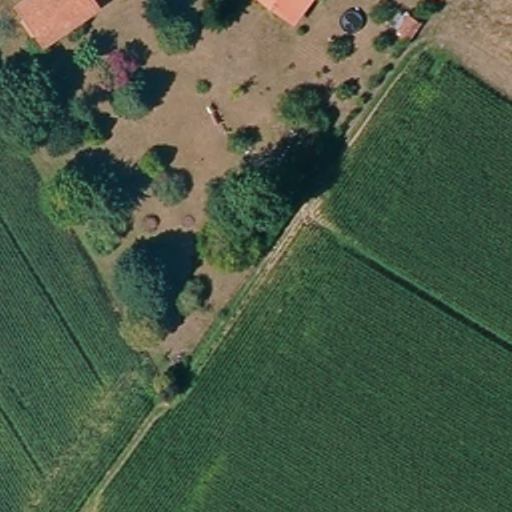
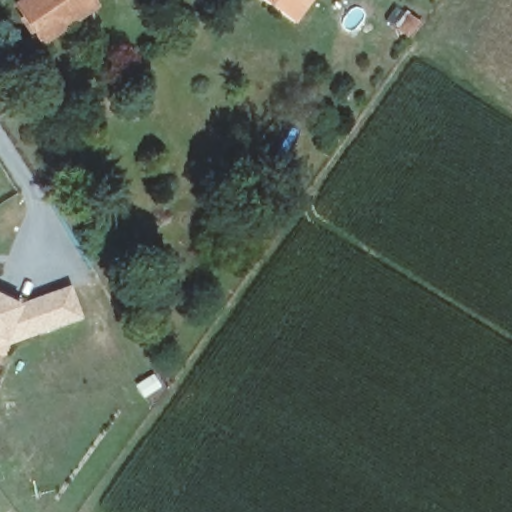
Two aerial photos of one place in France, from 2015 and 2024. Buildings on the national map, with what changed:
unchanged [(43,43),(20,6),(30,0),(89,0),(93,8),(43,43)]
unchanged [(263,0),(304,0),(291,19),(263,0)]
new [(20,304),(71,285),(82,318),(0,347),(0,294),(20,304)]

